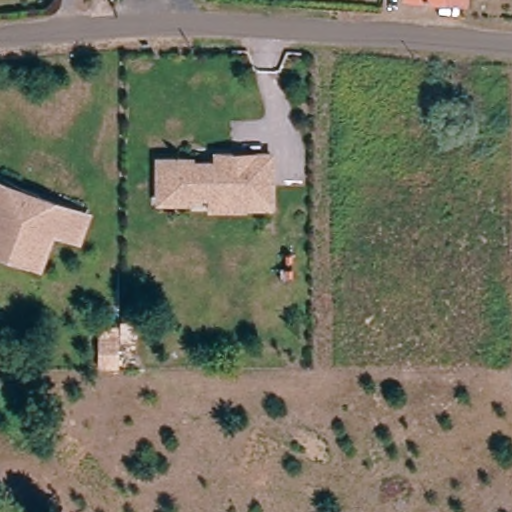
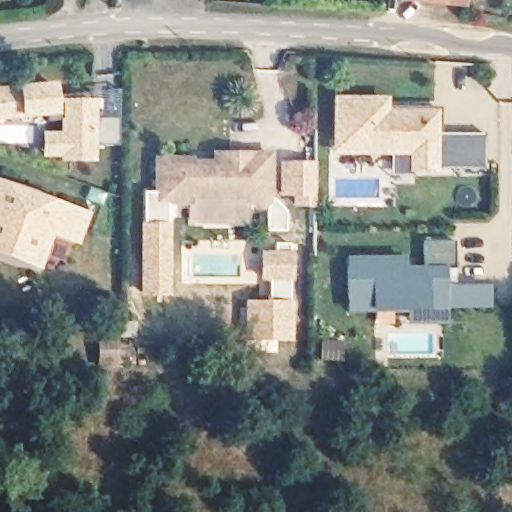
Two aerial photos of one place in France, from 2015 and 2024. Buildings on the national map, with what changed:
unchanged [(467,4),(423,0),(467,0),(467,4)]
new [(18,85),(54,82),(57,98),(97,99),(96,120),(118,120),(118,145),(96,145),(96,163),(62,163),(62,158),(43,158),(43,132),(61,131),(60,120),(49,121),(48,115),(23,118),(0,122),(0,88),(18,85)]
new [(390,98),(390,109),(441,109),(441,134),(484,133),(483,170),(440,169),(440,173),(414,173),(414,177),(391,175),(391,156),(333,154),(333,97),(390,98)]
unchanged [(205,212),(205,199),(185,198),(185,203),(152,203),(152,160),(185,160),(185,163),(210,163),(210,155),(227,155),(250,155),(266,155),(265,209),(252,209),(242,199),(239,199),(239,212),(205,212)]
new [(313,207),(293,206),(292,196),(279,196),(279,162),(315,161),(313,207)]
unchanged [(82,234),(73,230),(54,223),(41,256),(5,242),(0,240),(0,195),(7,178),(82,207),(91,210),(82,234)]
new [(140,220),(169,218),(168,297),(139,296),(140,220)]
unchanged [(0,253),(0,240),(5,242),(0,253)]
new [(406,255),(406,266),(426,266),(425,243),(456,242),(456,284),(491,284),(491,308),(448,308),(448,324),(408,326),(407,310),(348,311),(347,256),(406,255)]
new [(258,249),(290,247),(290,299),(266,298),(266,280),(258,280),(258,249)]
new [(242,298),(266,298),(290,299),(295,299),(294,342),(236,342),(242,298)]
unchanged [(116,332),(116,362),(101,362),(101,332),(116,332)]

